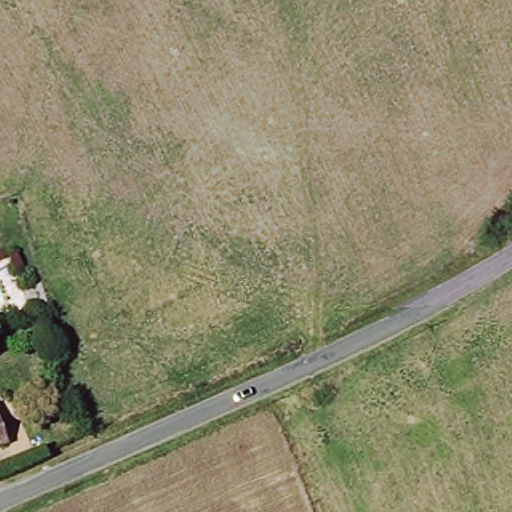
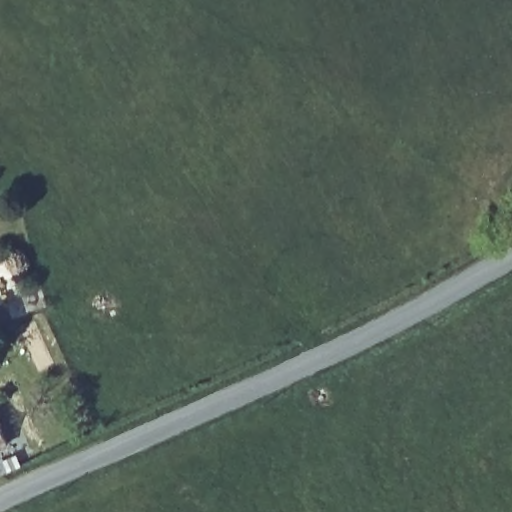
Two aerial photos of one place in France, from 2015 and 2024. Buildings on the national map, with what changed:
unchanged [(29,281),(37,301),(18,309),(10,288),(29,281)]
unchanged [(0,447),(0,415),(11,443),(0,447)]

